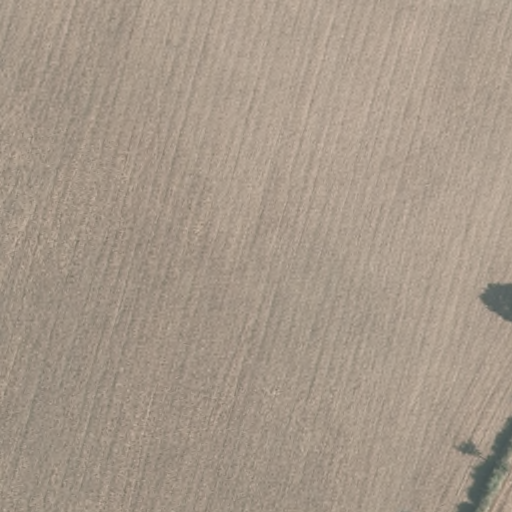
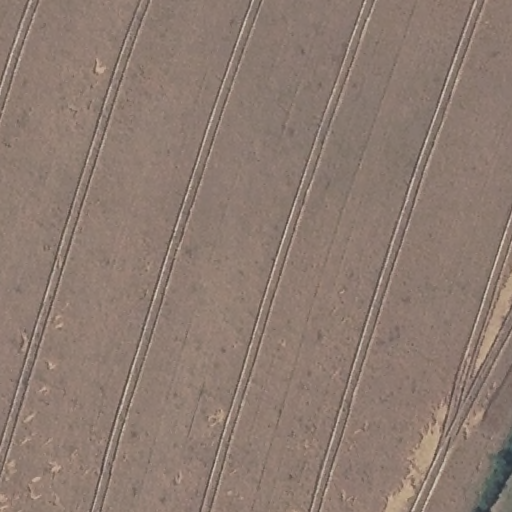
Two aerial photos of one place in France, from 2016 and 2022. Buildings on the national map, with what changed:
[]

